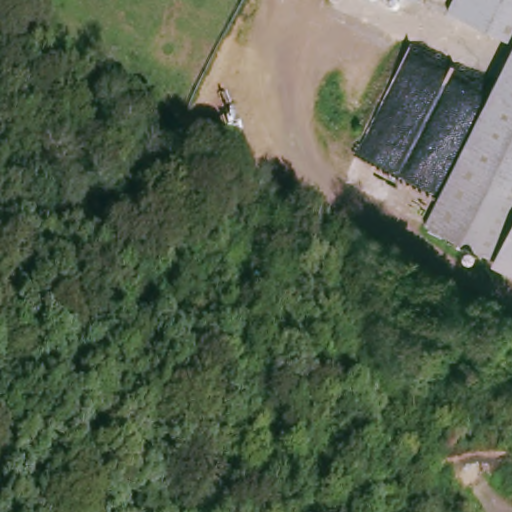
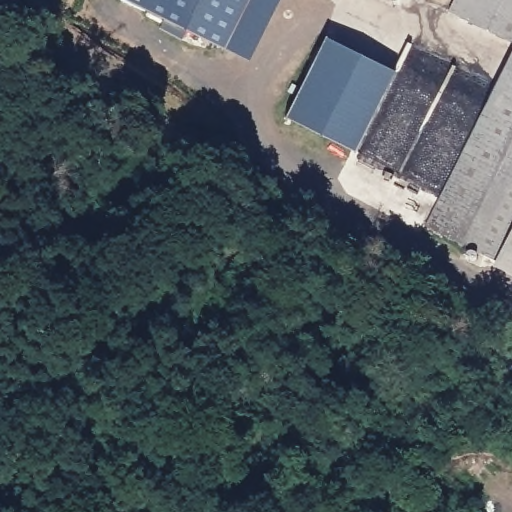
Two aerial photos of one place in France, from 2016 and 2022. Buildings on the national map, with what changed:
new [(123,0),(279,0),(249,60),(123,0)]
unchanged [(446,6),(449,0),(512,0),(512,40),(446,6)]
new [(286,115),(327,35),(395,70),(356,151),(286,115)]
unchanged [(488,259),(424,221),(512,47),(512,272),(488,259)]

